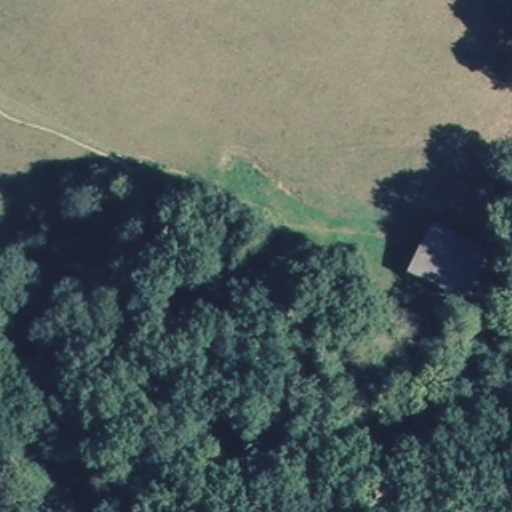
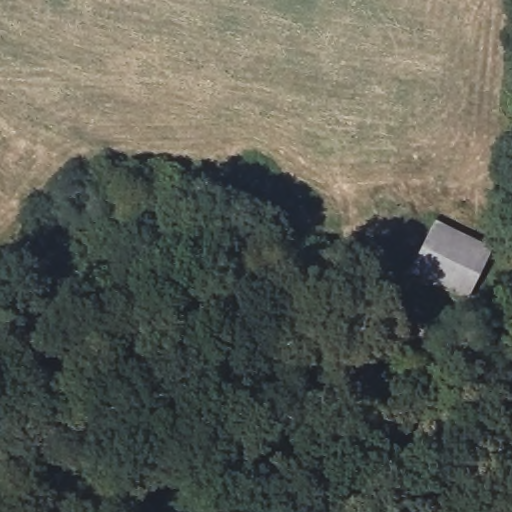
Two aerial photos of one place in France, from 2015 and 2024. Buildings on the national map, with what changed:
unchanged [(433,218),(487,249),(458,300),(407,269),(433,218)]

